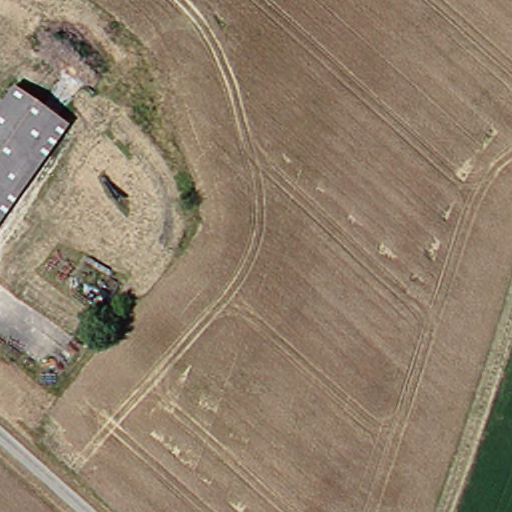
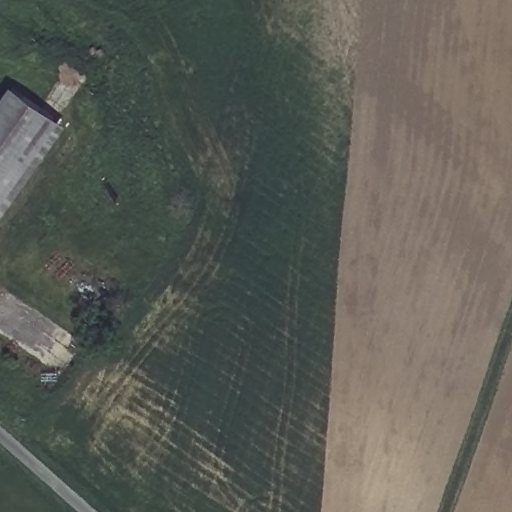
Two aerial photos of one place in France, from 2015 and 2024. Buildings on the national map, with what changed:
unchanged [(0,117),(23,88),(63,123),(0,200),(0,117)]
unchanged [(0,224),(0,200),(63,123),(75,130),(0,224)]

